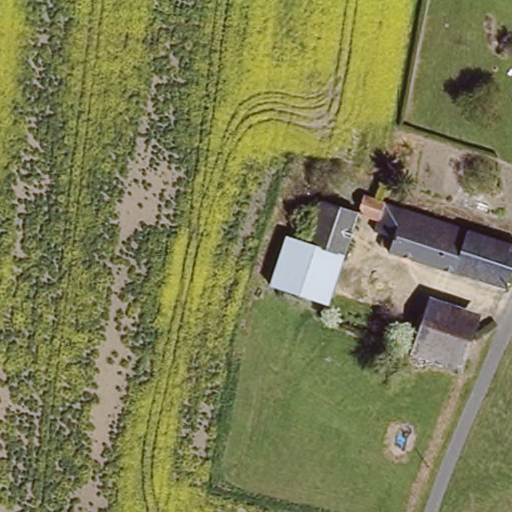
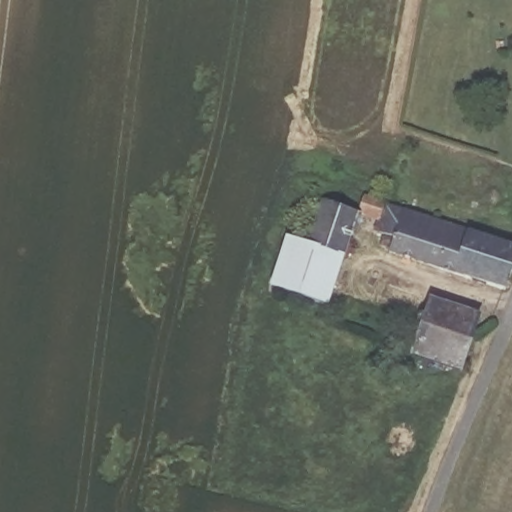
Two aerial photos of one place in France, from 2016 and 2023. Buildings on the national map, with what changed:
unchanged [(367,200),(512,246),(512,275),(506,291),(392,255),(393,251),(382,247),(386,236),(376,234),(382,220),(361,214),(366,202),(367,200)]
unchanged [(310,248),(328,204),(361,214),(343,258),(310,248)]
unchanged [(288,241),(310,248),(343,258),(324,304),(270,286),(288,241)]
unchanged [(430,300),(480,316),(462,372),(412,356),(430,300)]

